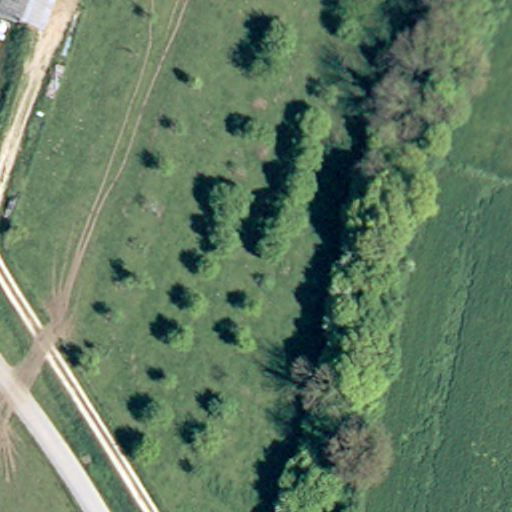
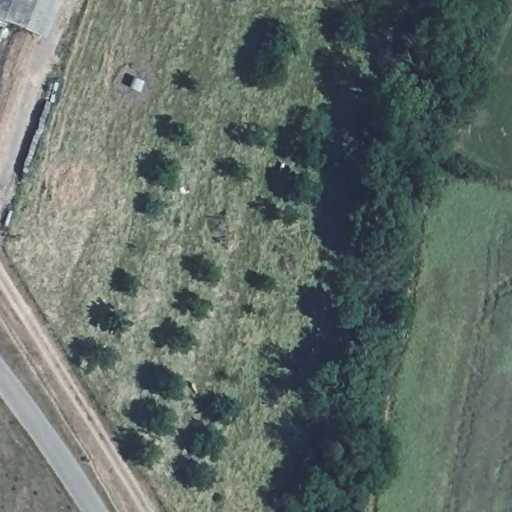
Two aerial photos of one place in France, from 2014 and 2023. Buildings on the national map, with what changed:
unchanged [(17,24),(0,17),(0,0),(27,0),(17,24)]

